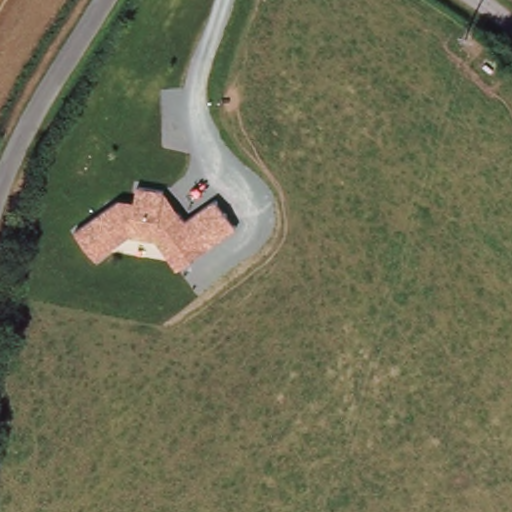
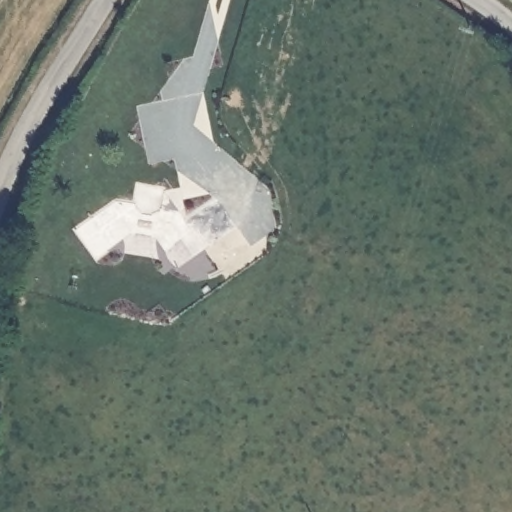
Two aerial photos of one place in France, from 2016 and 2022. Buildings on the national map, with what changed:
unchanged [(238,229),(178,271),(155,239),(129,235),(94,260),(72,229),(119,198),(135,200),(138,182),(163,185),(186,217),(214,198),(238,229)]

